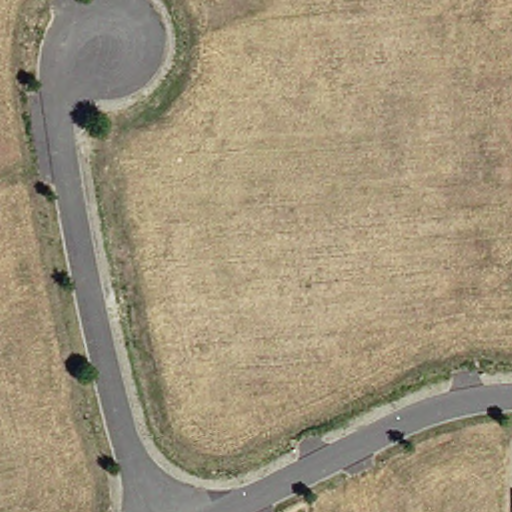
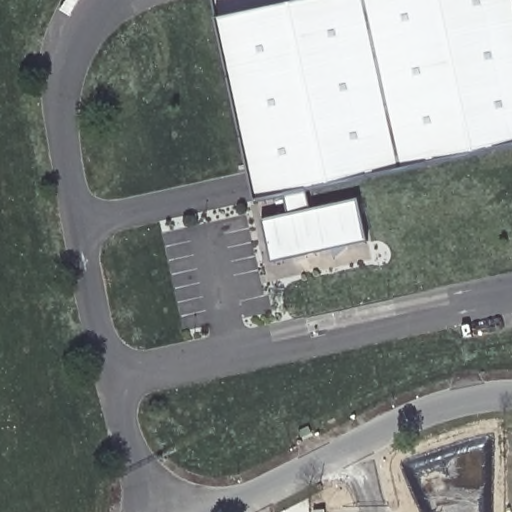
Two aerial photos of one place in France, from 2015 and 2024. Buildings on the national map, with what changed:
new [(402,173),(353,183),(366,241),(271,261),(262,203),(256,203),(217,24),(214,0),(512,0),(512,151),(402,173)]

